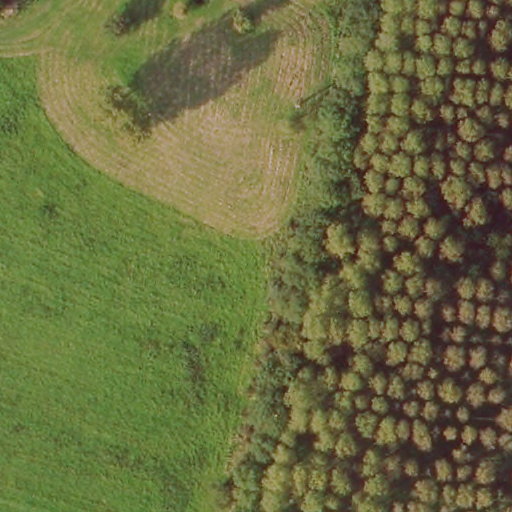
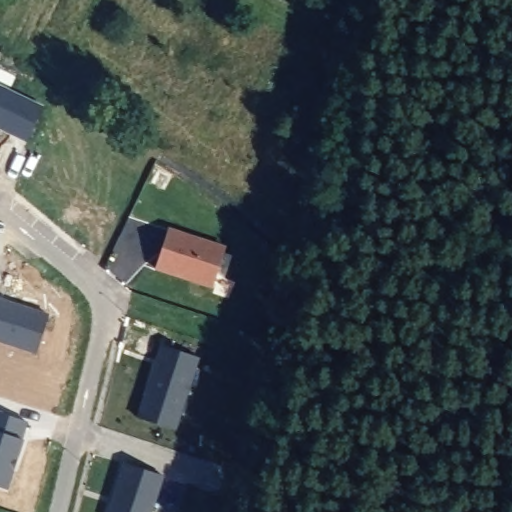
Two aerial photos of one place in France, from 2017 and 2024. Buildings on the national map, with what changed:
new [(0,130),(0,87),(43,108),(27,142),(0,130)]
new [(225,245),(212,284),(155,266),(167,227),(225,245)]
new [(0,297),(51,314),(37,354),(0,342),(0,297)]
new [(147,394),(152,377),(151,376),(161,343),(197,355),(174,428),(138,416),(145,394),(147,394)]
new [(0,413),(29,422),(24,440),(8,490),(0,488),(0,413)]
new [(150,512),(107,512),(124,461),(162,474),(150,512)]

